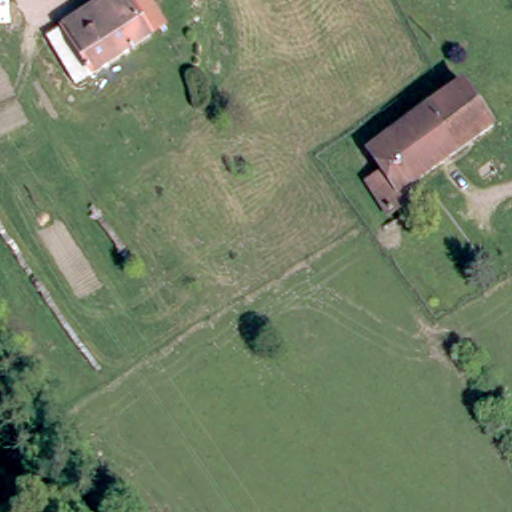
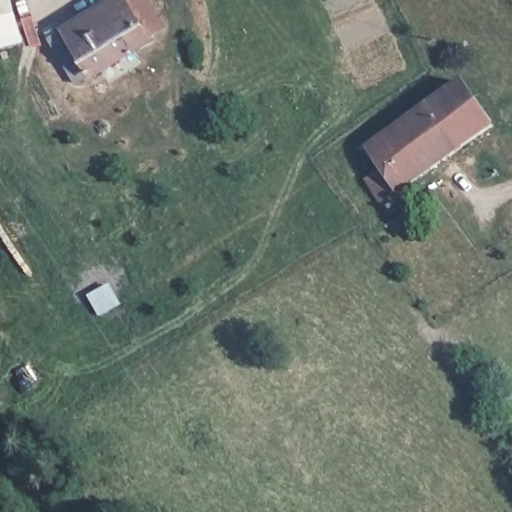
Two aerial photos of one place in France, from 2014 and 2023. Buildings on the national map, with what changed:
new [(0,48),(0,0),(13,0),(22,42),(0,48)]
unchanged [(153,29),(85,77),(55,34),(103,0),(133,0),(153,29)]
unchanged [(388,207),(368,175),(385,165),(370,141),(470,78),(497,124),(401,181),(410,195),(388,207)]

